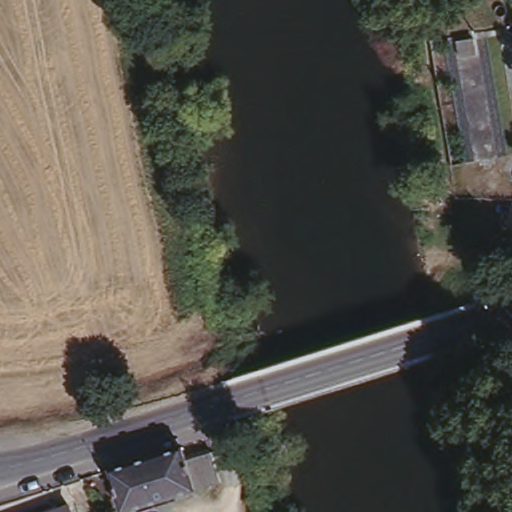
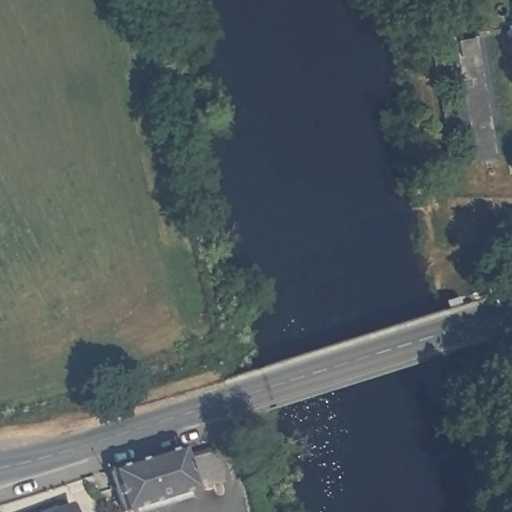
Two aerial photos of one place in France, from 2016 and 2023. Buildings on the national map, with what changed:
unchanged [(128,507),(113,470),(184,442),(188,455),(212,447),(221,472),(128,507)]
unchanged [(72,512),(35,512),(66,499),(72,512)]

